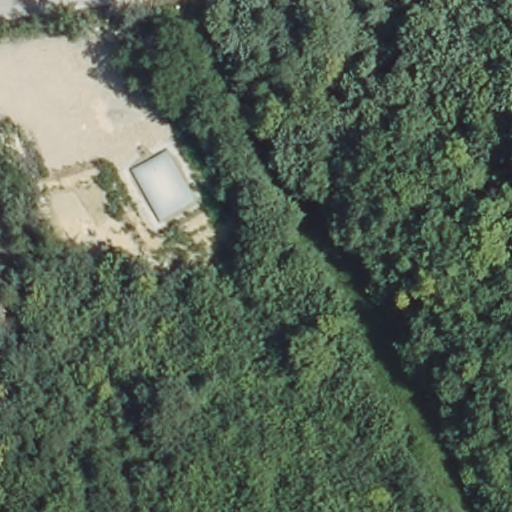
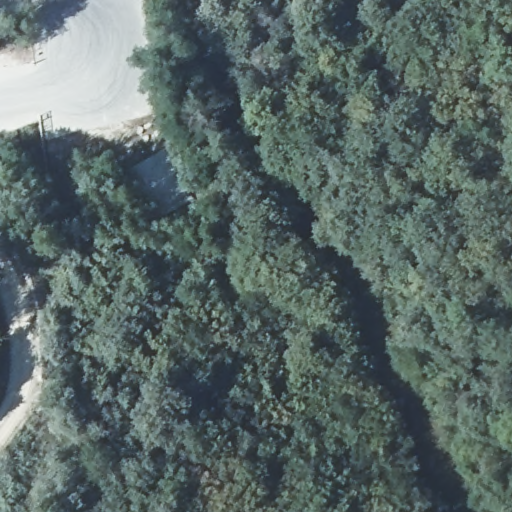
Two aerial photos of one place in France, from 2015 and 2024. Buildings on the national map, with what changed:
[]

